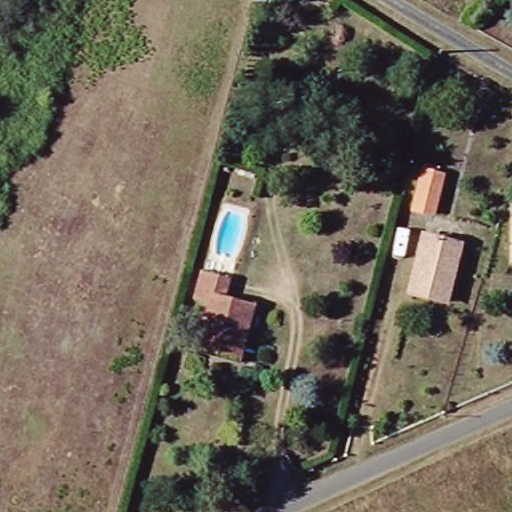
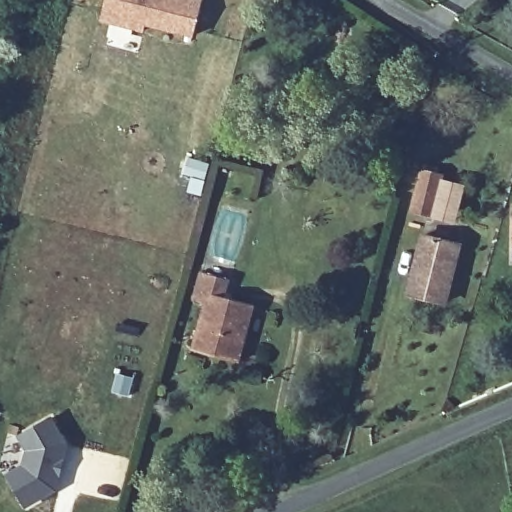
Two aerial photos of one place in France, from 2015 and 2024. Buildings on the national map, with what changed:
new [(192,37),(145,24),(143,32),(99,22),(105,0),(201,0),(192,37)]
unchanged [(269,19),(256,15),(260,0),(274,0),(269,19)]
unchanged [(429,214),(408,209),(419,169),(439,175),(429,214)]
unchanged [(512,261),(508,261),(509,242),(509,219),(512,219),(512,261)]
unchanged [(420,234),(458,245),(442,303),(404,292),(420,234)]
unchanged [(246,303),(232,360),(224,358),(189,349),(201,302),(189,299),(195,271),(222,278),(218,295),(238,300),(246,303)]
new [(57,491),(26,507),(4,474),(21,464),(25,450),(17,436),(51,417),(68,446),(57,491)]

